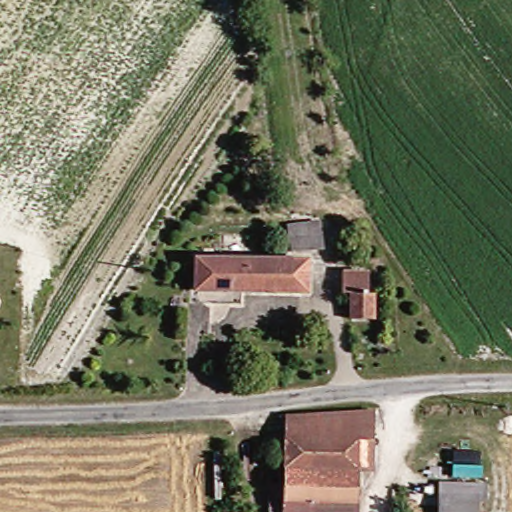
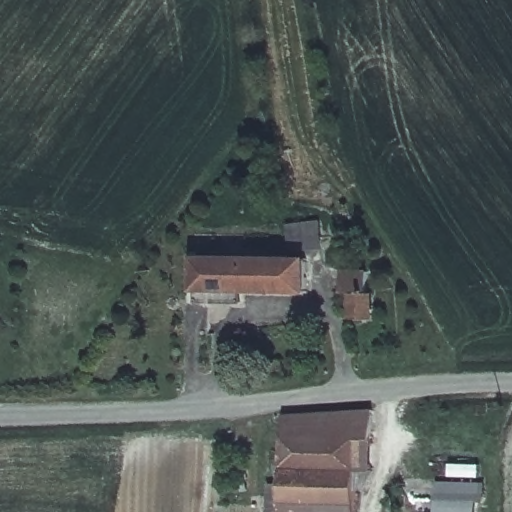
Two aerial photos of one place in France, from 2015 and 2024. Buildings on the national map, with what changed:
unchanged [(286,221),(319,223),(318,249),(287,249),(287,228),(286,221)]
unchanged [(305,258),(305,291),(236,288),(236,299),(205,298),(205,289),(201,285),(195,285),(197,256),(305,258)]
unchanged [(366,308),(353,305),(355,278),(367,279),(377,281),(377,290),(378,310),(366,308)]
unchanged [(306,412),(385,414),(384,443),(295,440),(292,413),(306,412)]
unchanged [(384,443),(383,473),(367,473),(298,471),(295,440),(384,443)]
unchanged [(290,508),(276,508),(277,481),(292,480),(293,472),(298,471),(367,473),(366,512),(290,512),(290,508)]
unchanged [(442,483),(474,483),(487,483),(488,501),(481,501),(481,512),(443,512),(442,483)]

